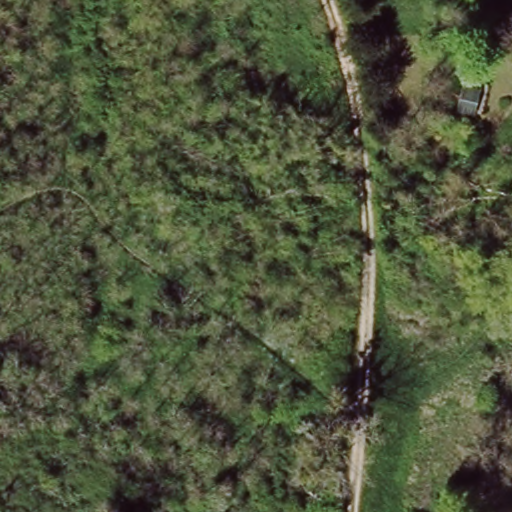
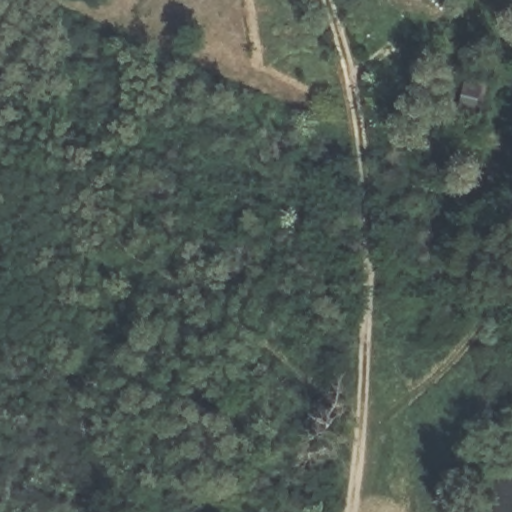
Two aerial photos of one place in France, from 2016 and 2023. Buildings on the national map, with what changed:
unchanged [(472,112),(455,105),(466,79),(483,84),(472,112)]

